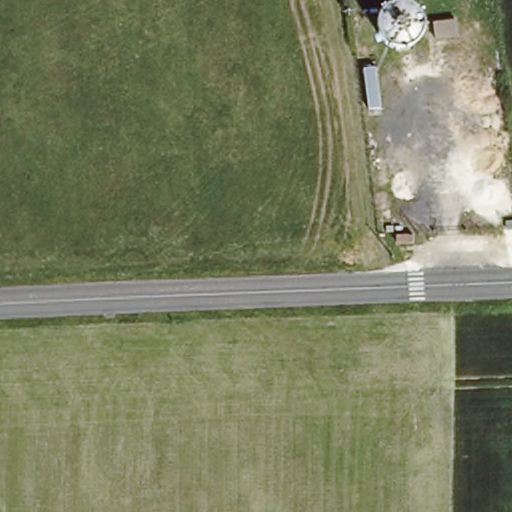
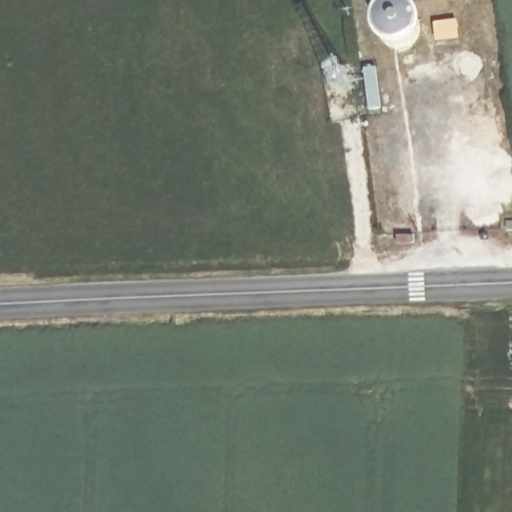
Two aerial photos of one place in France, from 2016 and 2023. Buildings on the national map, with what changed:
unchanged [(454,24),(457,37),(436,41),(434,27),(454,24)]
unchanged [(372,70),(379,112),(371,112),(364,71),(372,70)]

